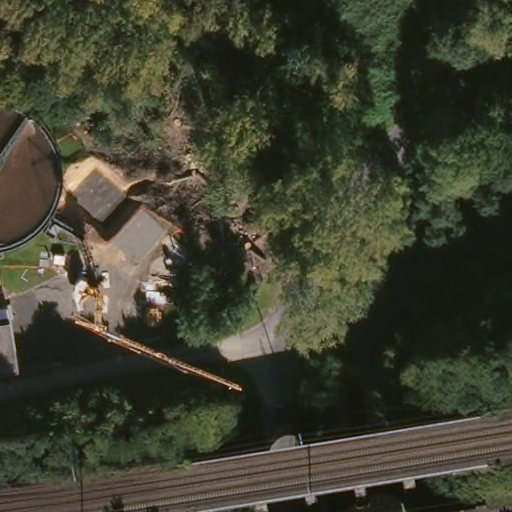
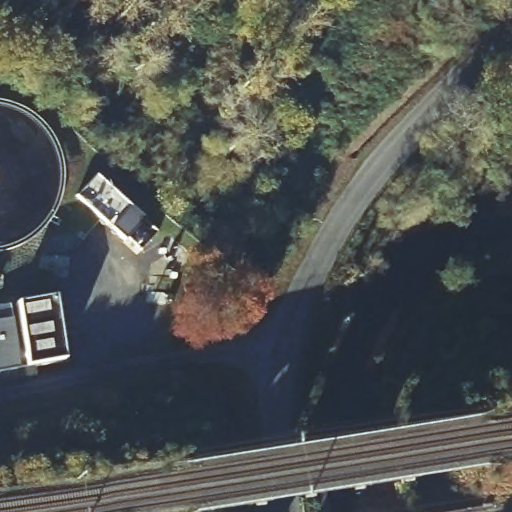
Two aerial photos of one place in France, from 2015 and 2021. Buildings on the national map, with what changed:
demolished [(101,225),(120,205),(148,227),(130,249),(101,225)]
new [(0,362),(0,313),(56,303),(64,352),(0,362)]
demolished [(0,373),(0,323),(10,321),(18,370),(0,373)]

